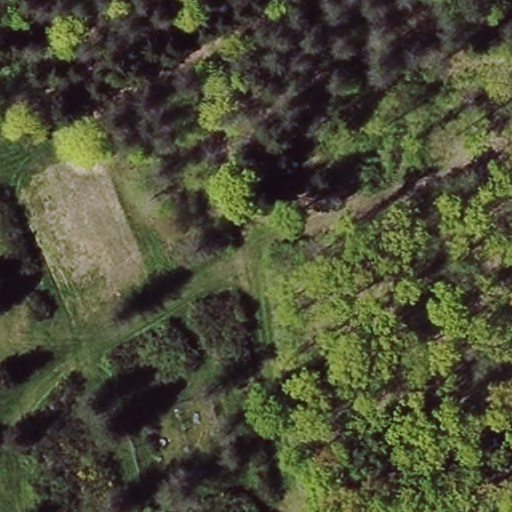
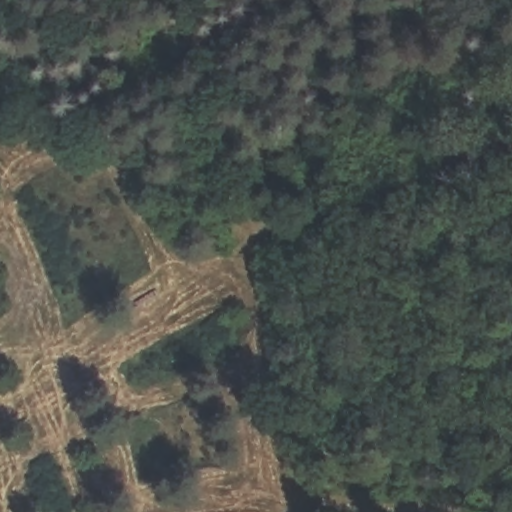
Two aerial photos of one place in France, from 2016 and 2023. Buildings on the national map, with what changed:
[]

